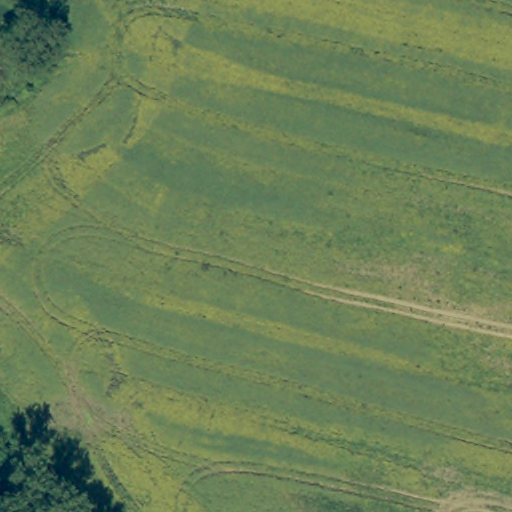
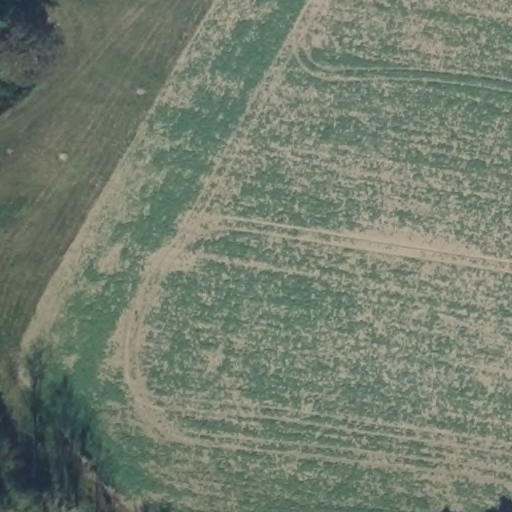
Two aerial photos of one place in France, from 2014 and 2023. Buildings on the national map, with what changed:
[]

